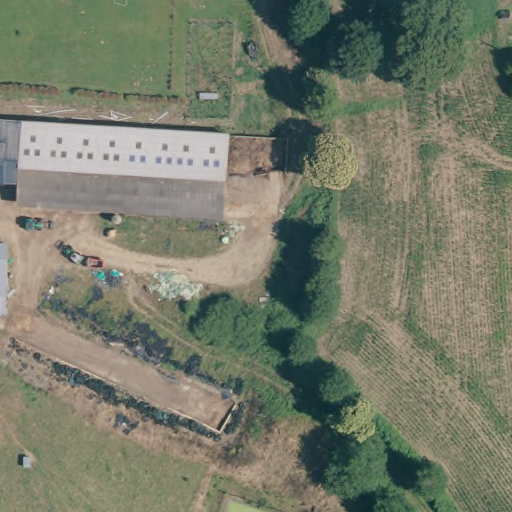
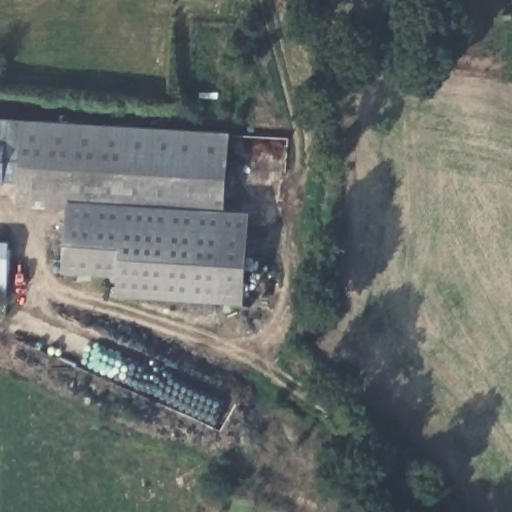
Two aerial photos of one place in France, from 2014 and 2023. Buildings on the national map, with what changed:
unchanged [(23,183),(8,183),(9,147),(0,147),(0,121),(26,122),(23,183)]
unchanged [(230,133),(225,199),(63,191),(22,189),(23,183),(26,122),(59,124),(230,133)]
unchanged [(9,147),(8,183),(0,183),(0,147),(9,147)]
new [(117,297),(117,278),(63,274),(65,209),(21,207),(22,189),(63,191),(225,199),(225,212),(250,214),(245,306),(117,297)]
unchanged [(6,309),(0,309),(0,235),(7,235),(6,280),(6,309)]

